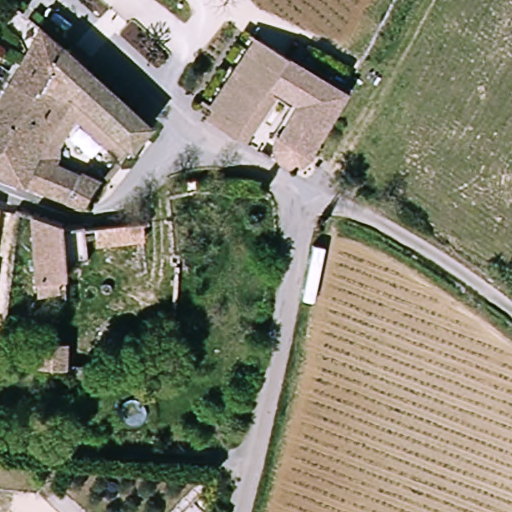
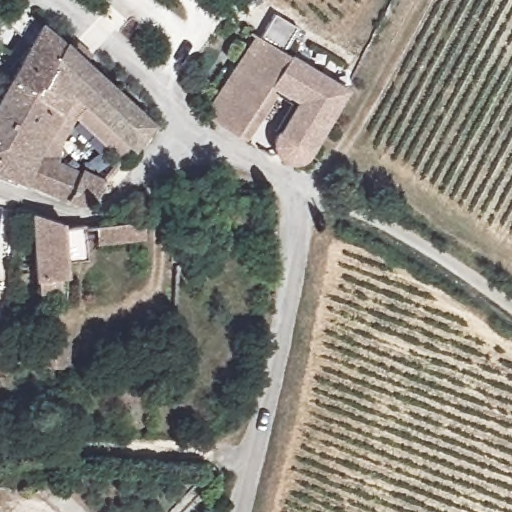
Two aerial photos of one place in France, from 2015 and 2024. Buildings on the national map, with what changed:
unchanged [(8,28),(18,9),(45,35),(63,52),(28,101),(3,85),(28,41),(8,28)]
unchanged [(246,40),(274,54),(258,88),(236,142),(206,127),(246,40)]
unchanged [(39,188),(0,171),(0,90),(3,85),(28,101),(63,52),(103,89),(151,140),(134,159),(75,103),(43,155),(105,190),(91,208),(39,188)]
unchanged [(275,138),(291,104),(258,88),(274,54),(336,86),(302,151),(279,158),(275,138)]
unchanged [(33,290),(33,276),(28,215),(63,226),(66,276),(66,290),(33,290)]
unchanged [(138,236),(91,240),(89,222),(114,220),(136,218),(138,236)]
unchanged [(23,366),(26,338),(60,342),(57,370),(23,366)]

